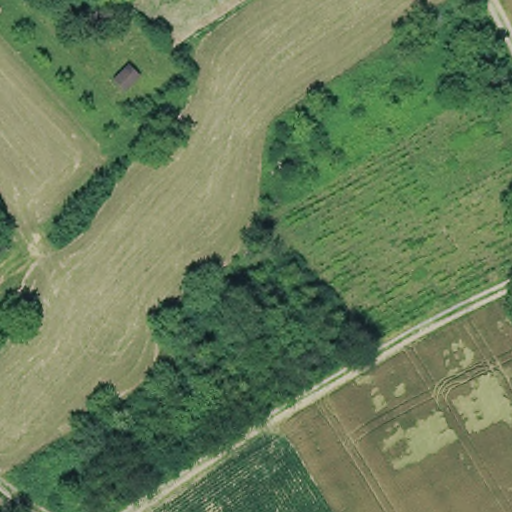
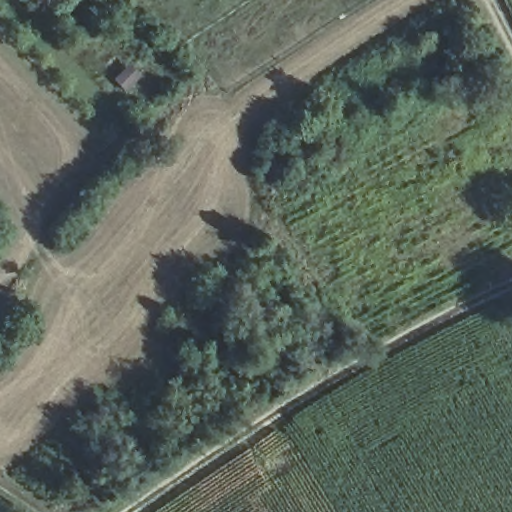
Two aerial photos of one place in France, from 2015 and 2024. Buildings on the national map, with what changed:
unchanged [(128,93),(90,53),(102,42),(140,83),(128,93)]

